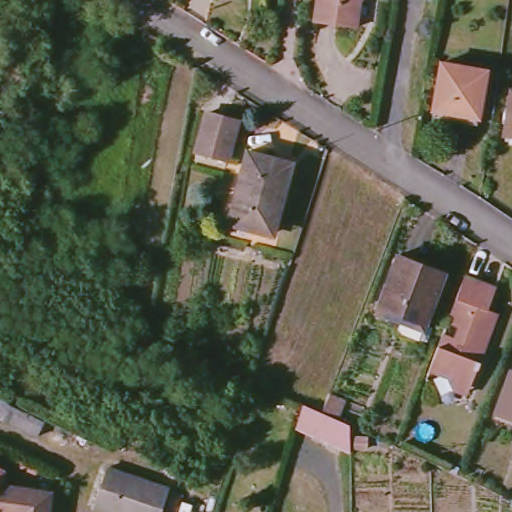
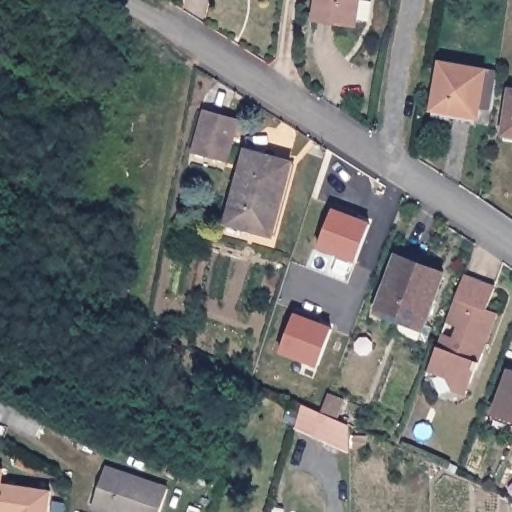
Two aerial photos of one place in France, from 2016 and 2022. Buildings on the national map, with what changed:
unchanged [(317,21),(319,0),(359,0),(356,25),(317,21)]
unchanged [(493,111),(481,109),(479,115),(454,111),(453,113),(433,109),(442,62),(499,74),(493,111)]
unchanged [(508,126),(512,100),(512,127),(508,126)]
unchanged [(228,160),(197,152),(208,112),(238,121),(228,160)]
unchanged [(257,231),(229,222),(248,151),(279,160),(257,231)]
unchanged [(279,160),(293,164),(274,235),(257,231),(279,160)]
new [(369,221),(356,262),(318,249),(333,209),(369,221)]
new [(353,209),(362,212),(361,217),(351,214),(353,209)]
unchanged [(375,306),(394,255),(441,273),(422,324),(375,306)]
unchanged [(463,277),(492,288),(486,305),(495,308),(481,347),(477,347),(474,355),(480,357),(478,365),(474,364),(469,376),(453,385),(444,366),(431,361),(463,277)]
new [(319,367),(279,353),(294,313),(333,326),(319,367)]
unchanged [(509,418),(496,413),(512,370),(512,419),(509,418)]
unchanged [(298,428),(305,405),(323,412),(329,394),(345,400),(338,420),(351,425),(351,451),(298,428)]
unchanged [(3,420),(11,405),(44,422),(38,436),(3,420)]
unchanged [(0,466),(10,469),(8,485),(0,484),(0,466)]
unchanged [(107,467),(170,488),(162,512),(112,512),(94,506),(107,467)]
unchanged [(53,491),(50,512),(0,512),(0,484),(8,485),(53,491)]

